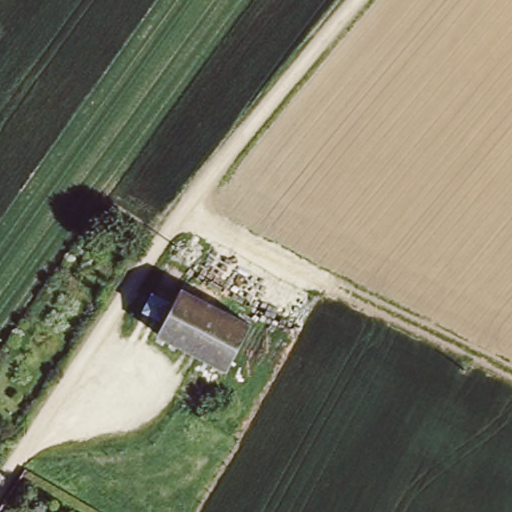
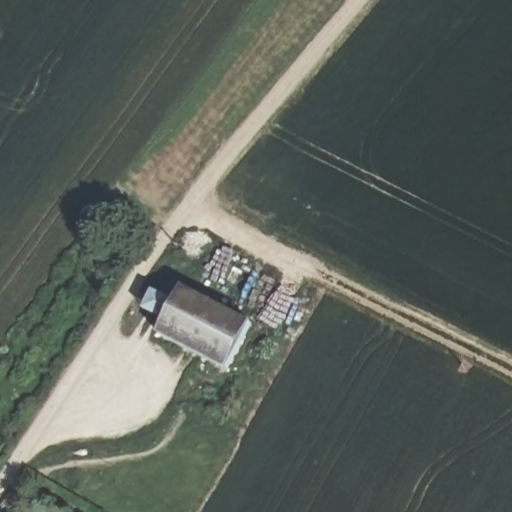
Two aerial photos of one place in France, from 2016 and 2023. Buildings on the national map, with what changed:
unchanged [(180,287),(248,318),(226,367),(157,336),(180,287)]

